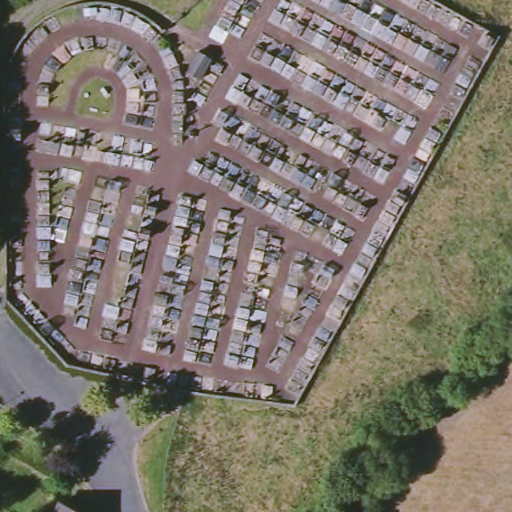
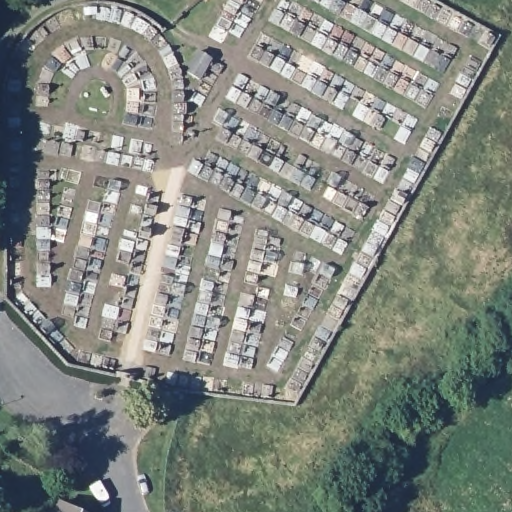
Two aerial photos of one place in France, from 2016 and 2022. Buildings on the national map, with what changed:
unchanged [(72,512),(60,512),(62,507),(72,512)]

